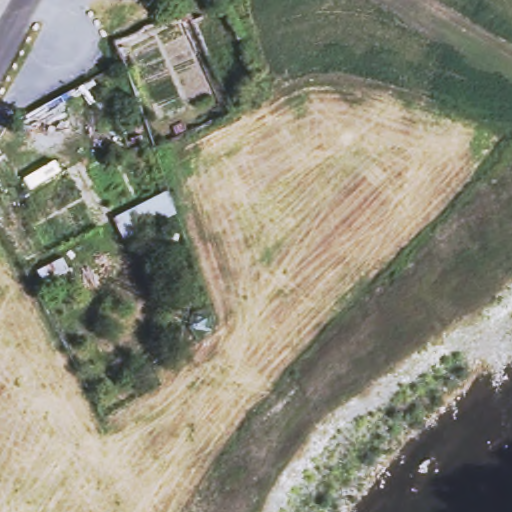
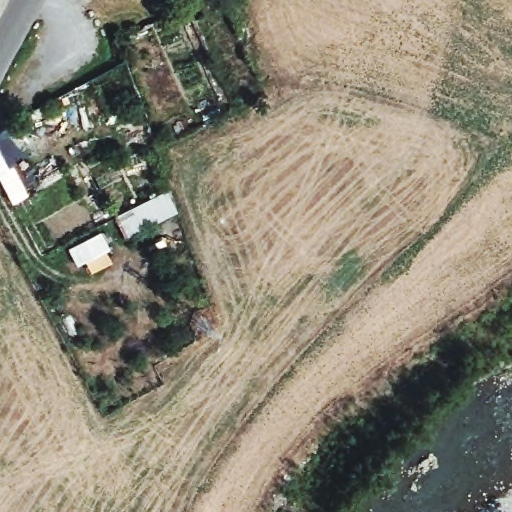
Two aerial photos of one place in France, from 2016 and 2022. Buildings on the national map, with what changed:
unchanged [(168,191),(179,215),(125,241),(114,217),(168,191)]

